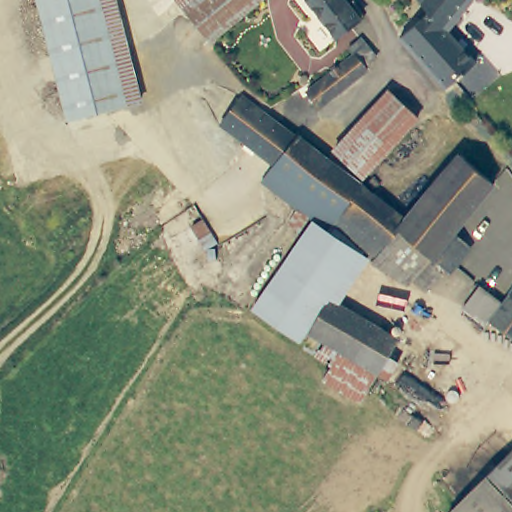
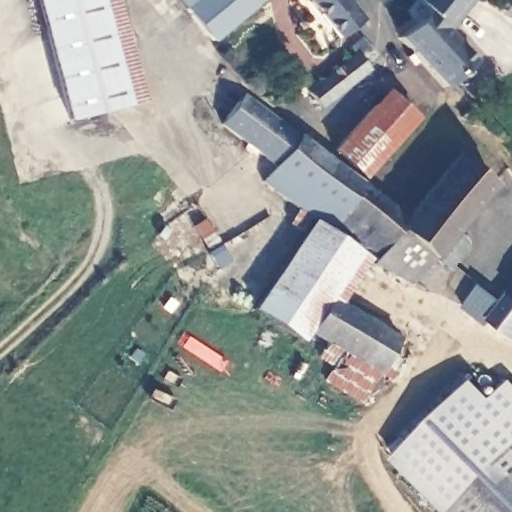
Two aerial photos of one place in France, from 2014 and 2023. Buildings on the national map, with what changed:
unchanged [(42,0),(105,0),(131,105),(72,120),(42,0)]
unchanged [(191,60),(168,31),(182,15),(171,0),(261,0),(263,2),(191,60)]
unchanged [(305,0),(343,0),(359,20),(335,39),(305,0)]
unchanged [(447,35),(474,68),(445,94),(398,43),(427,17),(416,4),(422,0),(470,0),(472,3),(470,6),(450,32),(447,35)]
unchanged [(359,77),(361,80),(313,117),(300,102),(347,65),(342,59),(355,48),(371,67),(359,77)]
unchanged [(354,193),(336,215),(315,200),(303,215),(260,182),(273,166),(220,125),(241,96),(296,138),(297,136),(299,137),(299,138),(302,135),(331,130),(342,140),(388,91),(417,119),(362,177),(333,150),(328,159),(361,184),(354,193)]
unchanged [(466,110),(472,115),(465,121),(460,116),(466,110)]
unchanged [(425,291),(411,280),(407,285),(372,263),(377,258),(362,247),(332,225),(326,231),(312,221),(309,219),(303,215),(315,200),(336,215),(354,193),(361,184),(404,220),(459,155),(493,184),(453,233),(470,247),(450,273),(431,258),(428,262),(441,273),(425,291)]
unchanged [(328,298),(397,340),(359,402),(322,380),(331,367),(316,356),(324,342),(308,333),(299,340),(252,309),(312,221),(326,231),(332,225),(362,247),(328,298)]
unchanged [(490,327),(486,331),(462,313),(479,290),(503,308),(512,296),(512,343),(490,327)]
new [(393,462),(474,382),(491,400),(511,381),(512,382),(512,455),(455,512),(440,512),(393,462)]
unchanged [(512,455),(512,512),(455,512),(512,455)]

